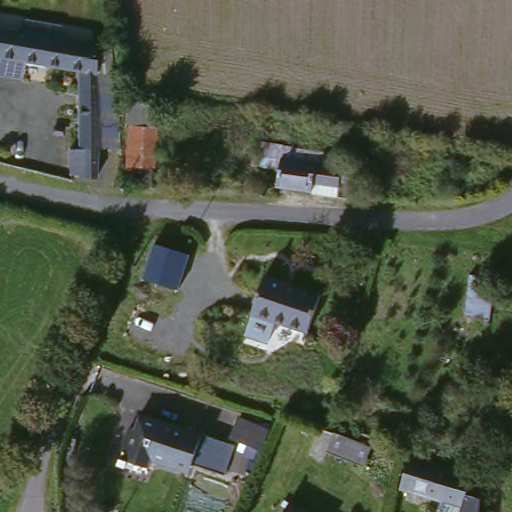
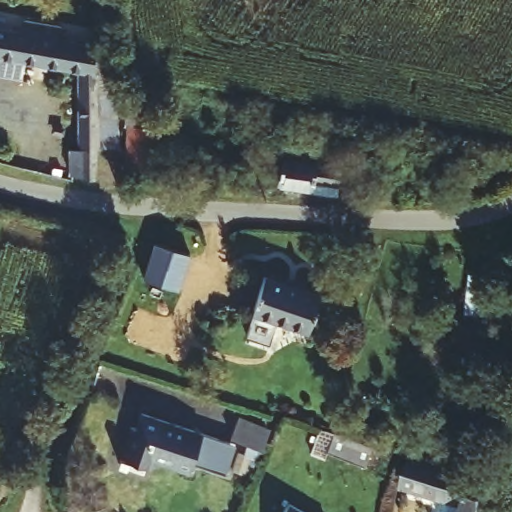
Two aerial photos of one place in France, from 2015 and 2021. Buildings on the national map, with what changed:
unchanged [(37,25),(59,30),(59,36),(102,43),(103,150),(97,151),(97,177),(70,178),(70,150),(77,148),(78,72),(0,60),(0,27),(34,32),(37,25)]
unchanged [(125,78),(165,85),(164,108),(155,108),(153,167),(122,165),(125,78)]
unchanged [(351,174),(349,185),(338,183),(335,190),(315,183),(311,193),(277,185),(284,160),(286,156),(351,174)]
unchanged [(144,279),(155,245),(191,255),(181,288),(144,279)]
unchanged [(497,275),(489,315),(464,311),(469,271),(497,275)]
unchanged [(321,290),(309,331),(252,311),(264,273),(321,290)]
unchanged [(237,442),(225,472),(196,461),(191,470),(153,455),(149,463),(126,453),(128,445),(124,443),(134,418),(139,420),(144,407),(237,442)]
unchanged [(265,430),(258,445),(229,431),(236,416),(265,430)]
unchanged [(370,444),(363,465),(324,450),(333,430),(370,444)]
unchanged [(480,512),(458,512),(458,500),(396,480),(405,447),(484,471),(480,512)]
unchanged [(307,512),(283,512),(289,503),(307,512)]

